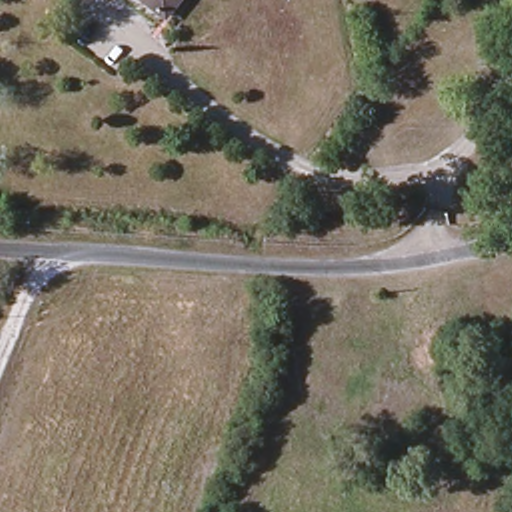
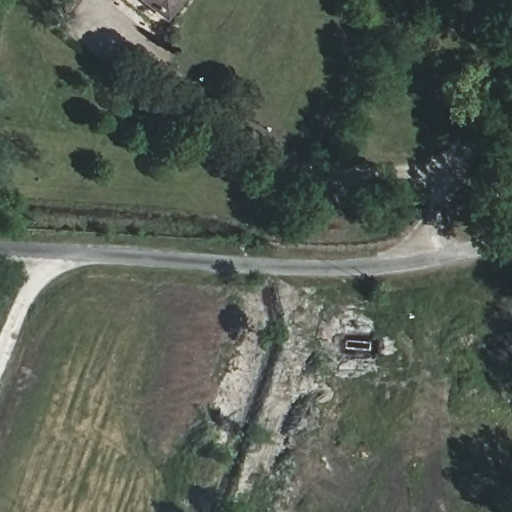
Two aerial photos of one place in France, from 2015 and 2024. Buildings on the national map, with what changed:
unchanged [(147,0),(179,0),(174,7),(168,15),(156,6),(147,0)]

